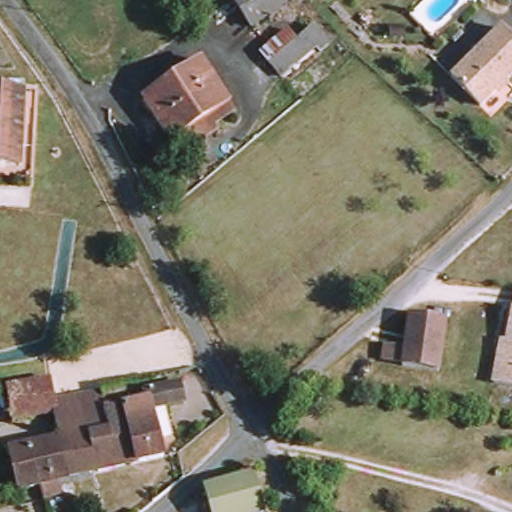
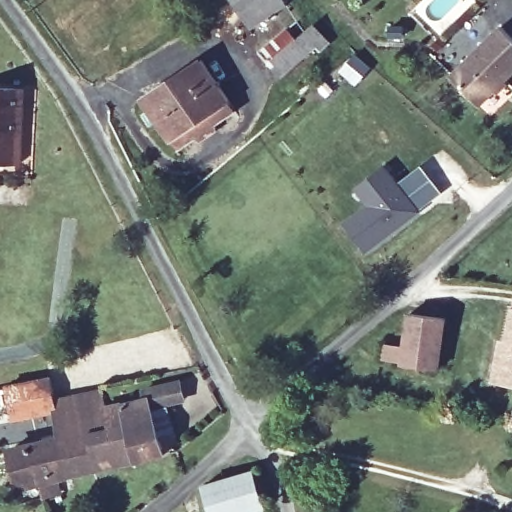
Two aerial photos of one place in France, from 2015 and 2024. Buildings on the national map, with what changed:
unchanged [(239,0),(285,0),(254,23),(239,0)]
unchanged [(426,1),(427,0),(435,0),(431,5),(426,1)]
unchanged [(309,36),(322,24),(334,39),(319,49),(287,76),(269,52),(290,33),(300,43),(309,36)]
unchanged [(484,104),(454,75),(503,26),(512,35),(512,76),(484,104)]
unchanged [(184,142),(177,134),(151,98),(203,62),(230,98),(235,106),(184,142)]
unchanged [(0,93),(39,100),(23,167),(0,164),(0,93)]
new [(369,250),(357,234),(347,222),(372,203),(359,186),(387,164),(421,209),(390,233),(382,240),(369,250)]
unchanged [(392,341),(412,344),(418,312),(453,318),(445,368),(409,362),(410,359),(390,356),(392,341)]
unchanged [(509,341),(512,325),(512,386),(495,382),(498,365),(504,340),(509,341)]
unchanged [(24,384),(58,380),(61,399),(60,410),(21,417),(16,386),(24,384)]
unchanged [(112,429),(108,407),(147,397),(146,389),(177,382),(182,406),(155,413),(161,455),(104,469),(73,477),(65,439),(112,429)]
unchanged [(78,396),(78,399),(106,393),(108,407),(112,429),(65,439),(60,410),(61,399),(78,396)]
unchanged [(49,484),(24,490),(15,450),(65,439),(73,477),(49,484)]
unchanged [(215,487),(261,470),(272,508),(255,512),(221,512),(215,487)]

